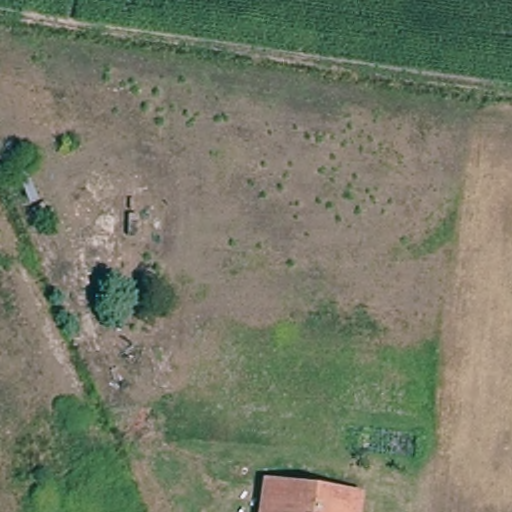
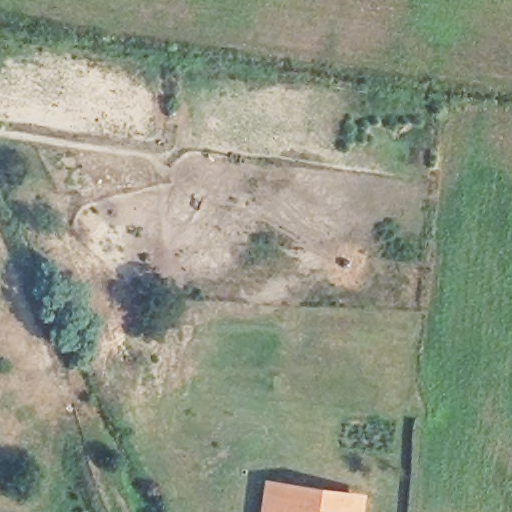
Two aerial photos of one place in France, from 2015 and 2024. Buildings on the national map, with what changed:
unchanged [(276,490),(292,492),(368,507),(368,512),(273,512),(276,490)]

